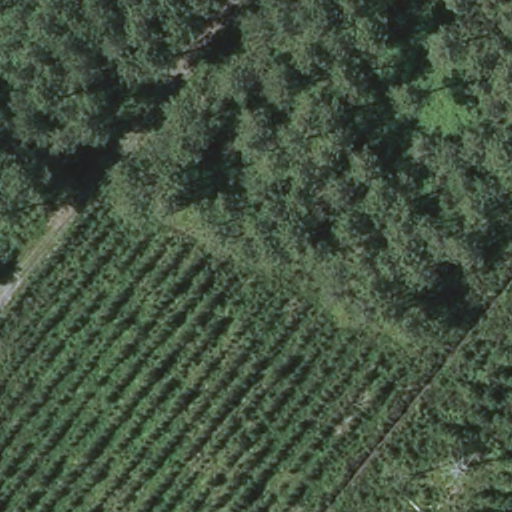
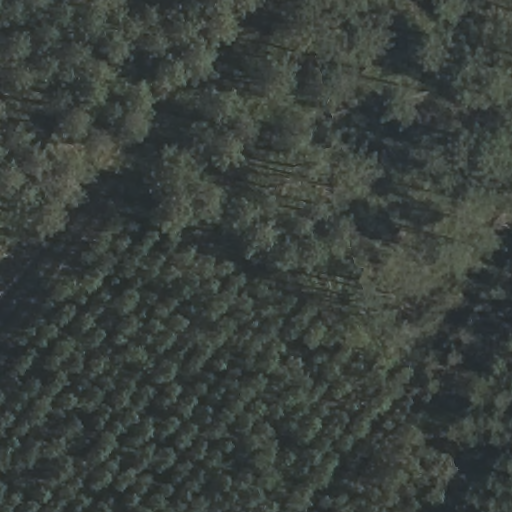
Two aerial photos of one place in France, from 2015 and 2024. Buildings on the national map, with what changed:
[]

